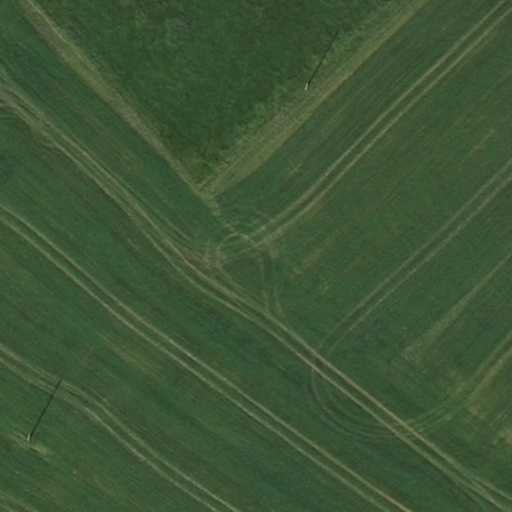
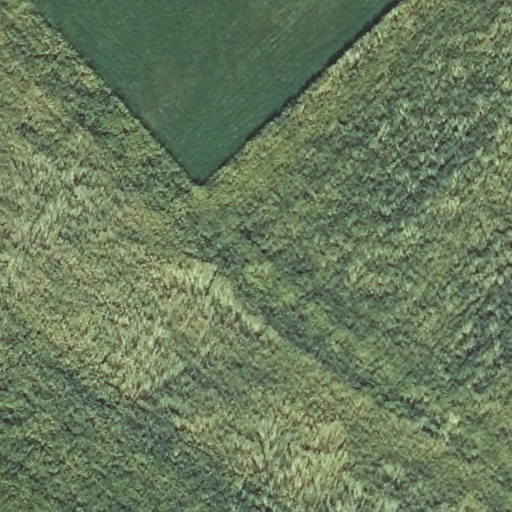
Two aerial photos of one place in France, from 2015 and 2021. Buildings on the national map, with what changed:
[]

